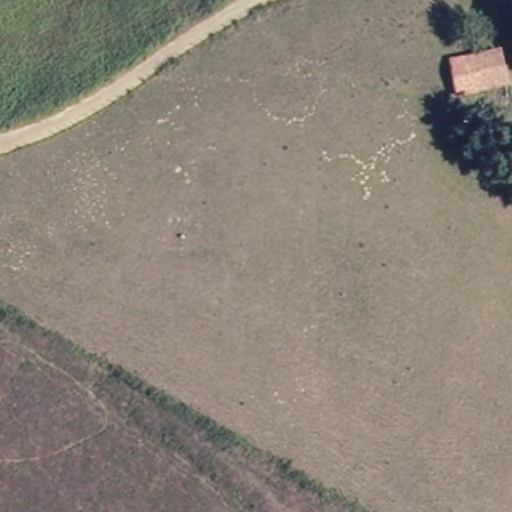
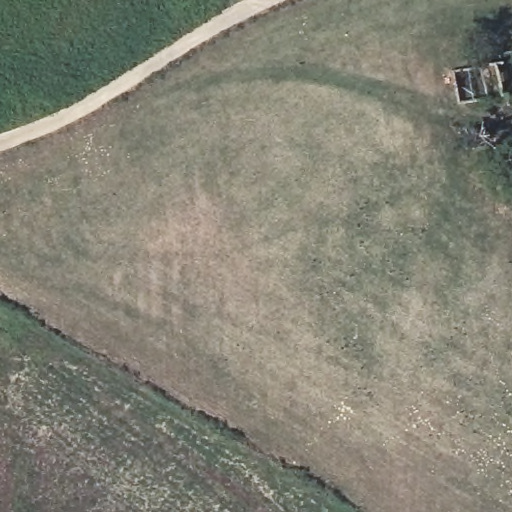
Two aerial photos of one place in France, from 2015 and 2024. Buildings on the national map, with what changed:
unchanged [(507,91),(460,103),(451,71),(500,58),(507,91)]

